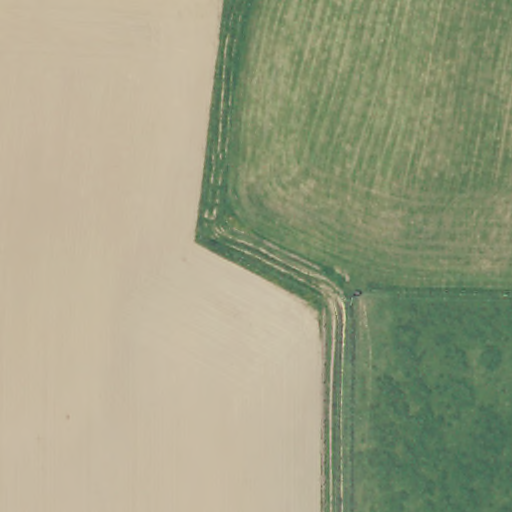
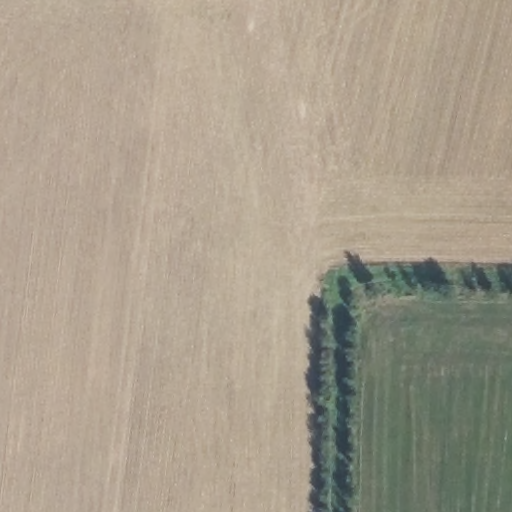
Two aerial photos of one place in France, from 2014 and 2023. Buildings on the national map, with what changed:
[]

